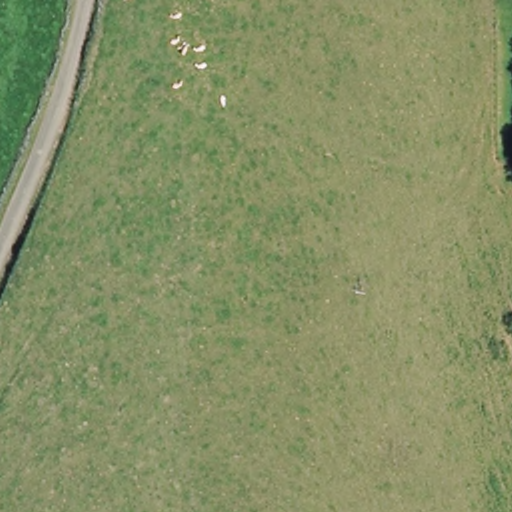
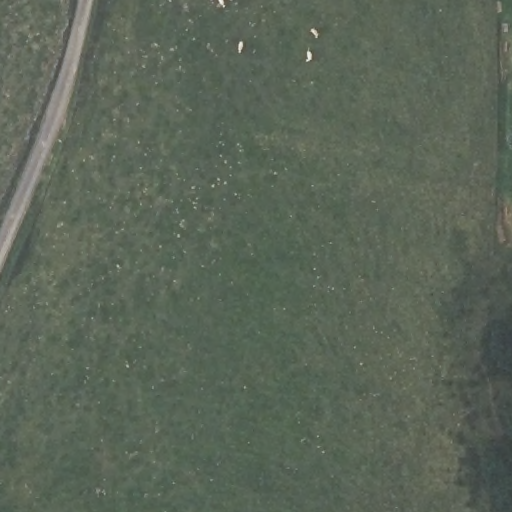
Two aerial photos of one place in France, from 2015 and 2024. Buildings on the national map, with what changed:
[]

